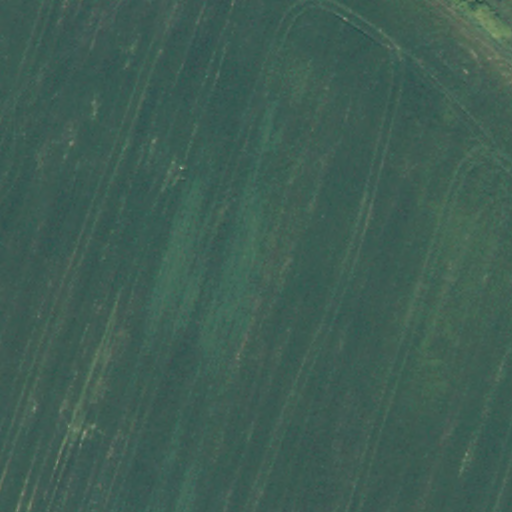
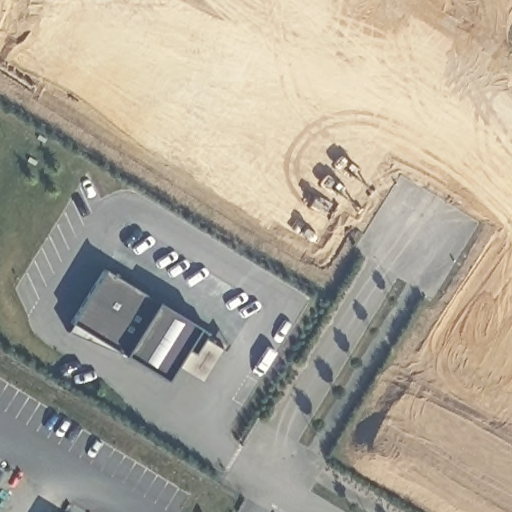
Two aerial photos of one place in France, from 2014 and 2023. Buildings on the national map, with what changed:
new [(194,355),(185,350),(166,379),(125,355),(73,325),(105,271),(158,302),(201,329),(207,333),(194,355)]

